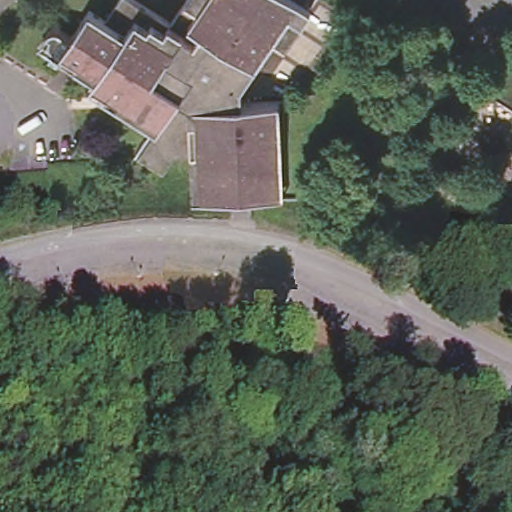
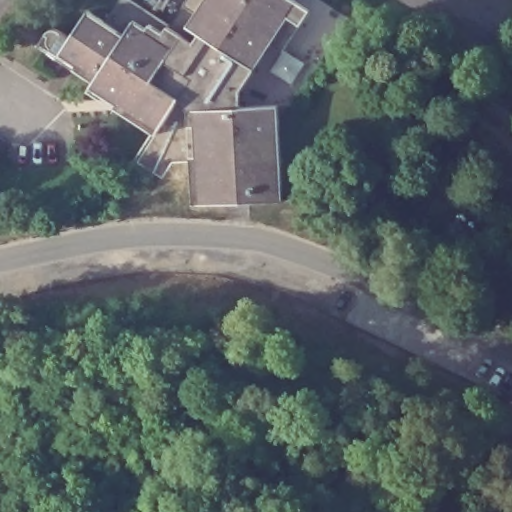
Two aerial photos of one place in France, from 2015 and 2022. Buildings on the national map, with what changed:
unchanged [(193,208),(192,176),(196,174),(195,166),(189,164),(176,164),(163,182),(138,165),(155,137),(160,130),(146,121),(155,107),(154,91),(111,90),(105,98),(92,89),(95,84),(79,74),(108,26),(124,0),(171,29),(190,0),(279,0),(277,2),(298,16),(276,50),(270,46),(265,42),(248,67),(253,71),(230,108),(279,109),(282,188),(282,206),(270,205),(193,208)]
unchanged [(79,74),(75,72),(78,66),(50,49),(47,35),(55,32),(61,32),(72,39),(89,14),(108,26),(79,74)]

